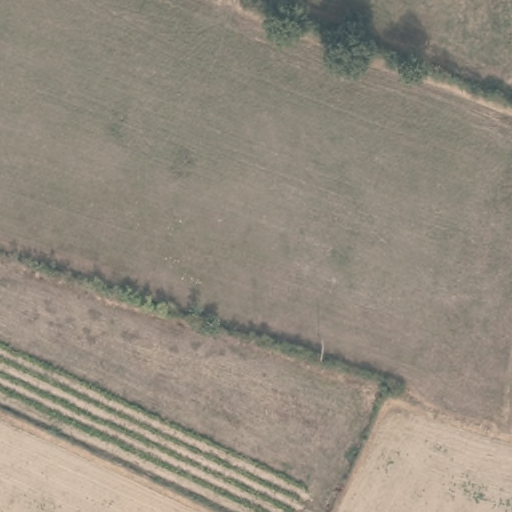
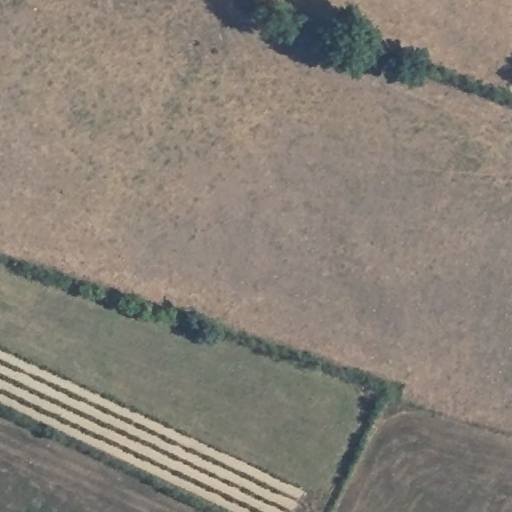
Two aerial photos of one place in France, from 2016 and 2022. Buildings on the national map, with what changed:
[]

